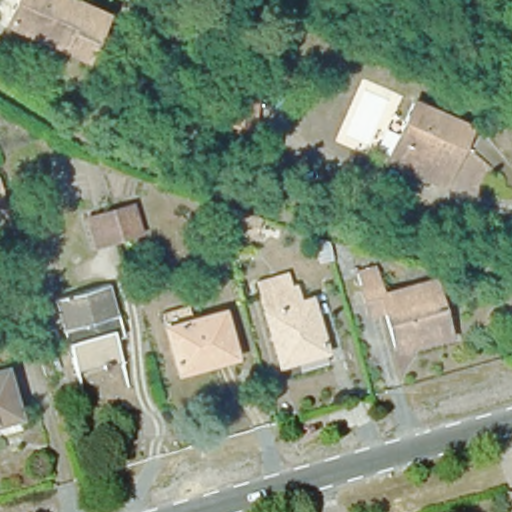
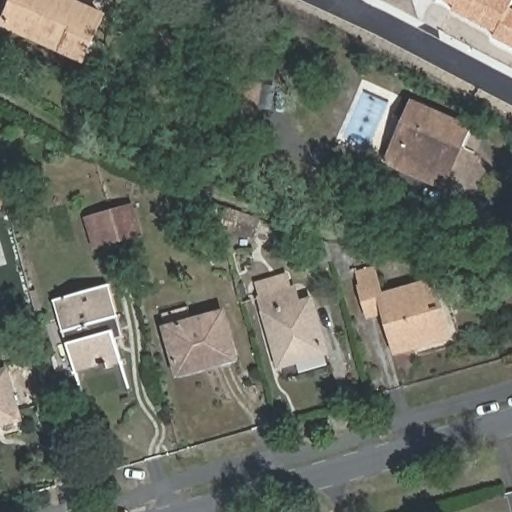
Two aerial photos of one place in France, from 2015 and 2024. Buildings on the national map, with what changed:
unchanged [(74,52),(0,19),(0,11),(5,0),(68,0),(93,11),(74,52)]
new [(512,2),(510,6),(512,7),(512,47),(493,37),(495,32),(452,10),(455,6),(444,0),(512,0),(512,2)]
unchanged [(236,79),(261,84),(253,130),(228,125),(236,79)]
unchanged [(432,179),(389,160),(413,102),(467,126),(455,155),(443,184),(432,179)]
unchanged [(146,181),(141,191),(126,185),(131,175),(146,181)]
unchanged [(78,213),(101,206),(124,200),(131,229),(110,235),(86,242),(78,213)]
unchanged [(223,230),(212,226),(218,207),(229,210),(223,230)]
unchanged [(244,237),(226,230),(232,211),(250,217),(244,237)]
unchanged [(292,300),(308,297),(323,352),(277,365),(254,281),(261,280),(279,275),(283,286),(288,285),(292,300)]
unchanged [(410,350),(392,355),(380,316),(364,320),(357,292),(374,287),(377,297),(408,289),(427,284),(430,293),(441,332),(444,341),(410,350)]
unchanged [(109,285),(124,336),(116,338),(123,363),(106,368),(105,365),(77,373),(56,300),(109,285)]
unchanged [(236,357),(180,373),(168,328),(164,314),(187,307),(191,321),(224,311),(236,357)]
unchanged [(20,415),(0,420),(0,372),(8,370),(20,415)]

